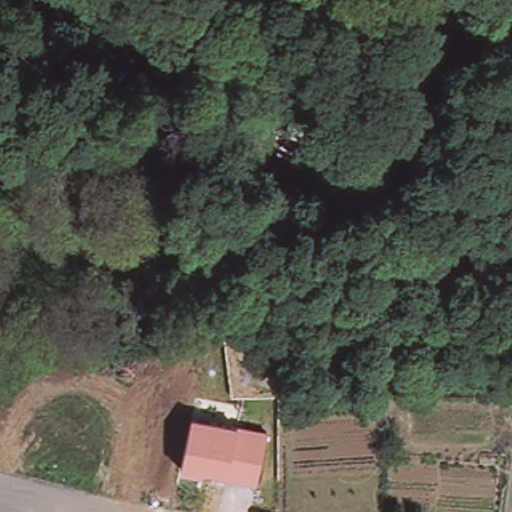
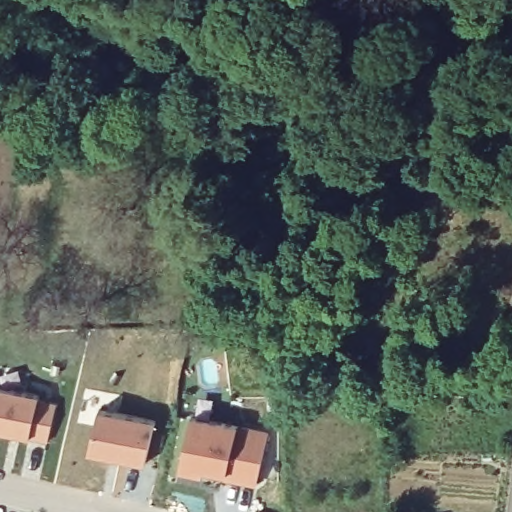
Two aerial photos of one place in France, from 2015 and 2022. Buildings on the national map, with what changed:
new [(57,400),(50,439),(30,435),(0,430),(0,387),(38,395),(57,400)]
new [(99,409),(154,422),(145,466),(89,453),(99,409)]
unchanged [(271,434),(260,484),(229,477),(230,472),(207,467),(207,472),(184,466),(195,417),(271,434)]

